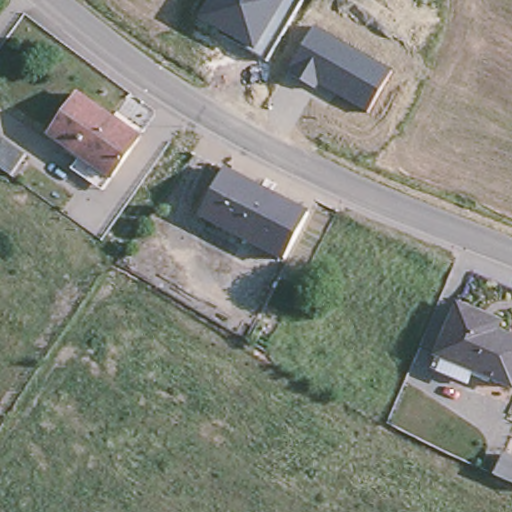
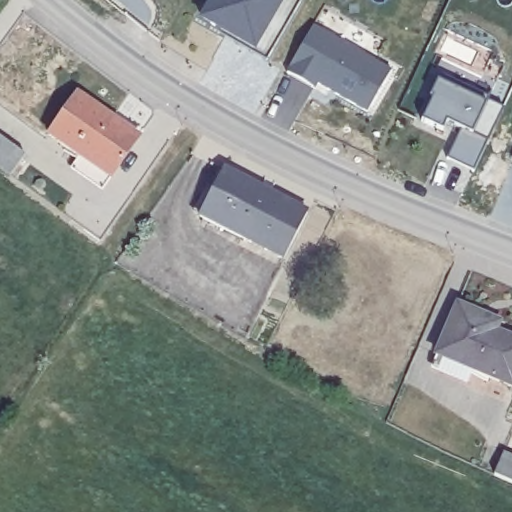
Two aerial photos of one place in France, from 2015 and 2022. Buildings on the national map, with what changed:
unchanged [(220,34),(220,31),(199,18),(209,0),(297,0),(264,57),(220,34)]
unchanged [(310,24),(393,70),(368,112),(319,83),(315,88),(282,68),(310,24)]
new [(444,76),(490,98),(473,135),(489,142),(475,172),(448,160),(462,130),(447,123),(443,132),(423,122),(444,76)]
unchanged [(68,164),(76,152),(45,131),(73,90),(135,133),(107,174),(99,186),(68,164)]
unchanged [(26,156),(11,177),(0,169),(0,137),(26,156)]
unchanged [(308,213),(285,260),(200,217),(224,170),(308,213)]
unchanged [(483,317),(479,326),(512,339),(512,387),(437,356),(458,306),(483,317)]
unchanged [(504,450),(512,454),(512,478),(495,471),(504,450)]

